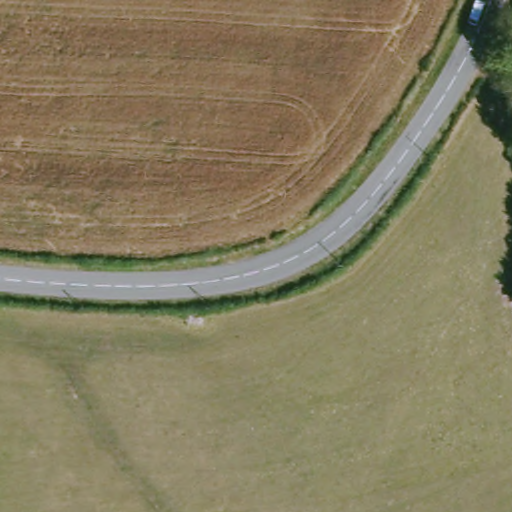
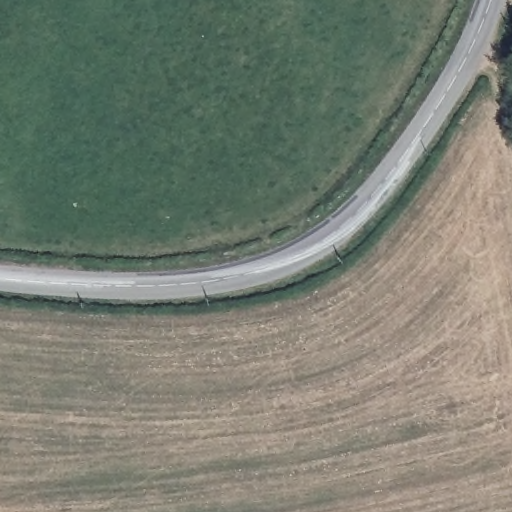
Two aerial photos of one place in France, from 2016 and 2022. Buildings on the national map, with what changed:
[]

